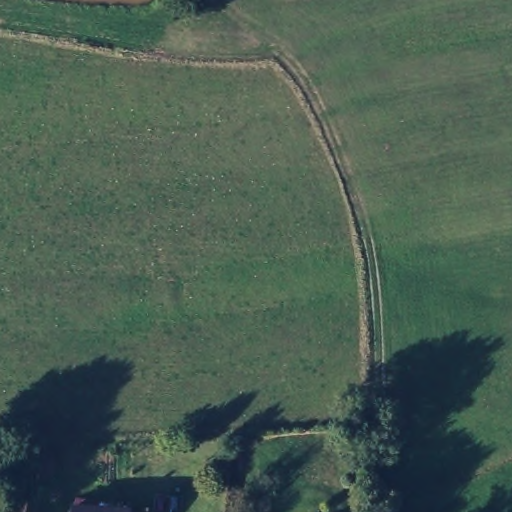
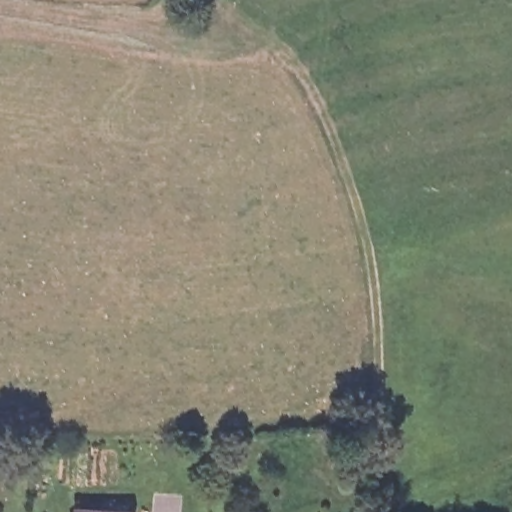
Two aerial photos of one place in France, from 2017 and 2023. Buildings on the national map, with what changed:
unchanged [(69,512),(70,503),(126,507),(126,512),(69,512)]

